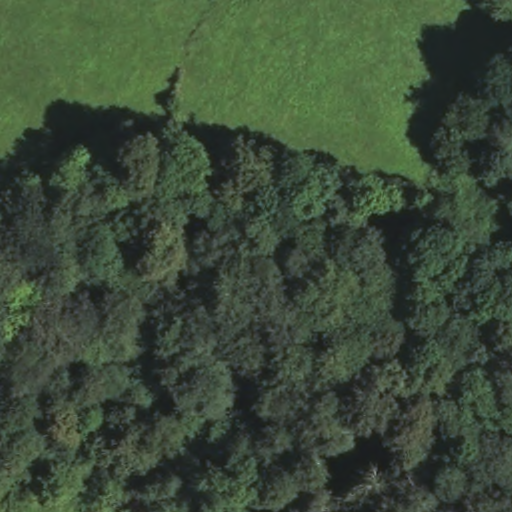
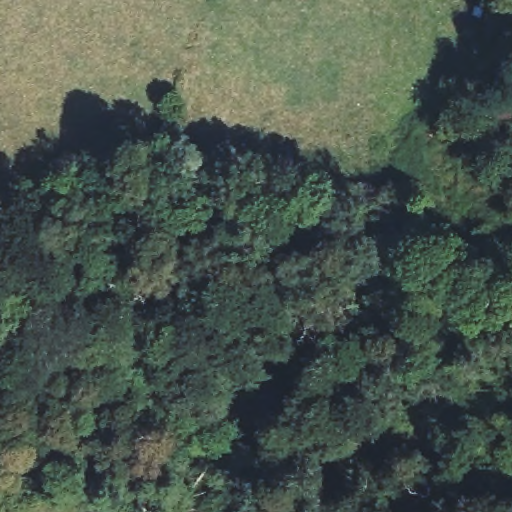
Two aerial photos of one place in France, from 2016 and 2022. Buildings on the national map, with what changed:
[]

